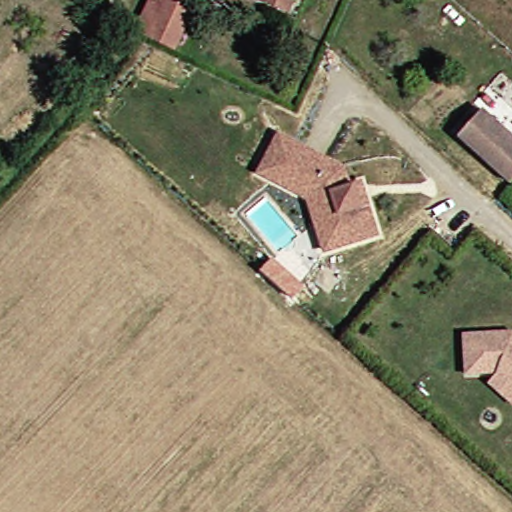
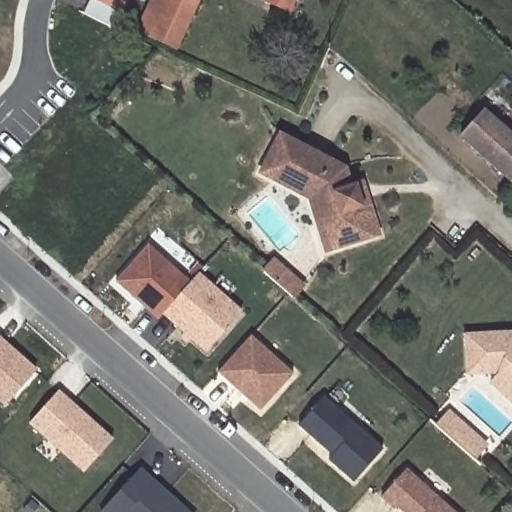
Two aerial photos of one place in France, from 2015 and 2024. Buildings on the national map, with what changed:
new [(101,0),(123,0),(119,9),(101,0)]
unchanged [(194,0),(174,43),(150,32),(165,0),(194,0)]
unchanged [(264,0),(294,0),(289,11),(264,0)]
unchanged [(483,110),(512,137),(512,182),(512,183),(460,137),(483,110)]
unchanged [(309,199),(260,173),(280,135),(344,169),(349,187),(356,185),(361,184),(368,206),(373,222),(377,236),(362,240),(339,247),(325,252),(316,223),(309,199)]
new [(149,245),(192,284),(166,313),(159,320),(116,283),(149,245)]
new [(275,259),(307,287),(297,299),(264,270),(275,259)]
new [(192,284),(200,274),(244,313),(210,351),(166,313),(192,284)]
unchanged [(500,371),(468,373),(466,333),(512,331),(512,401),(491,381),(500,371)]
new [(0,336),(37,369),(5,407),(0,403),(0,336)]
new [(254,338),(296,375),(264,412),(222,374),(254,338)]
new [(84,413),(93,419),(114,439),(86,471),(32,423),(59,391),(84,413)]
new [(324,396),(384,448),(356,481),(330,459),(334,454),(300,424),(324,396)]
new [(448,412),(486,446),(473,459),(436,426),(448,412)]
new [(141,468),(190,512),(101,512),(141,468)]
new [(406,469),(454,512),(402,512),(397,507),(394,510),(381,498),(406,469)]

